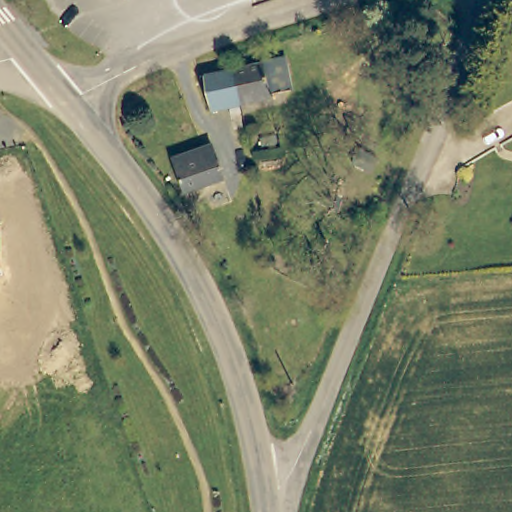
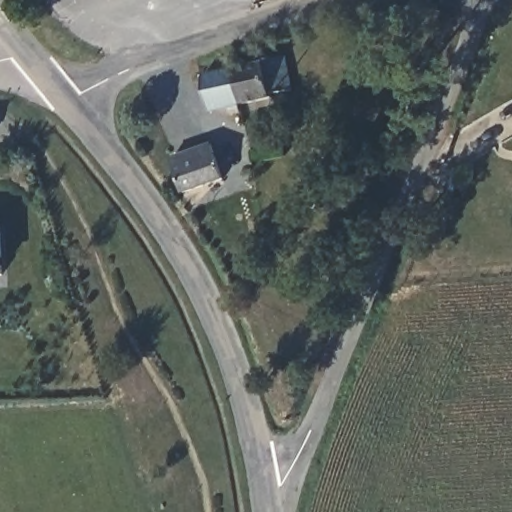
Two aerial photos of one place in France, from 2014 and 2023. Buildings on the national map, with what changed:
unchanged [(279,66),(283,95),(262,98),(262,102),(233,107),(227,75),(279,66)]
unchanged [(201,112),(195,79),(227,72),(227,75),(233,107),(201,112)]
unchanged [(224,179),(186,192),(176,158),(214,146),(224,179)]
unchanged [(5,272),(2,276),(0,276),(0,223),(2,223),(5,272)]

